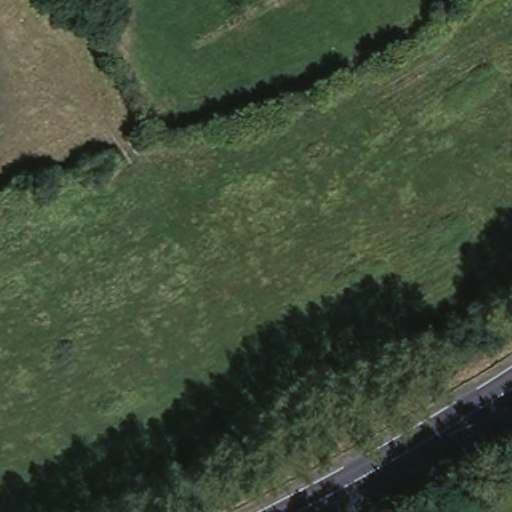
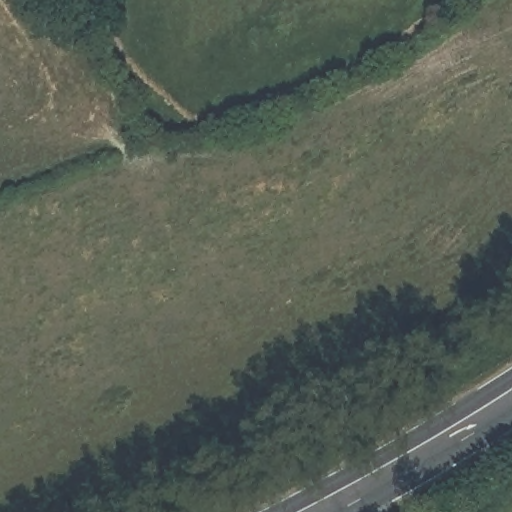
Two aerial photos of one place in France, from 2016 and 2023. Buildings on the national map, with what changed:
[]

